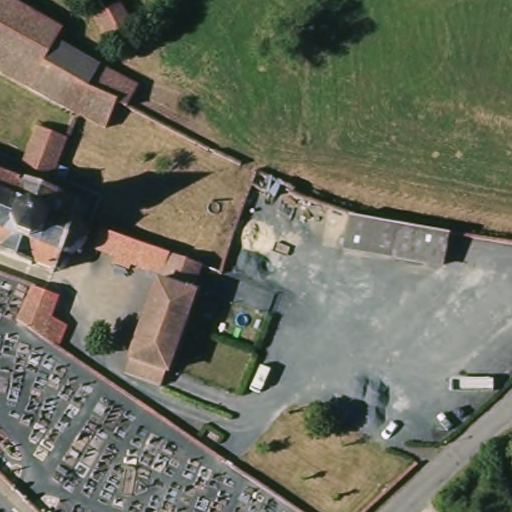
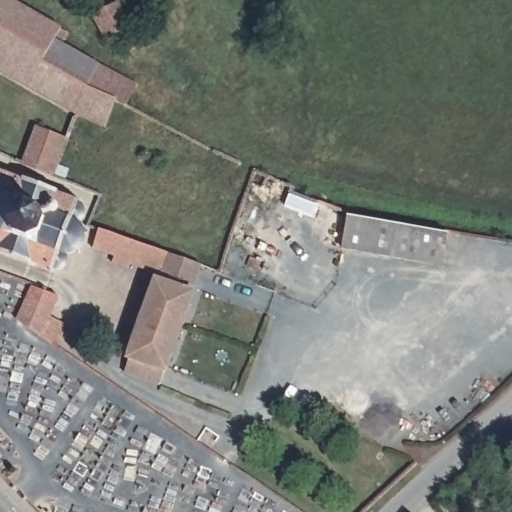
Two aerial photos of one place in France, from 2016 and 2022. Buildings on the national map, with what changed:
unchanged [(124,77),(125,77),(136,83),(137,83),(137,84),(136,87),(133,92),(130,99),(127,103),(126,102),(125,101),(117,98),(112,111),(109,122),(108,123),(107,126),(77,114),(0,70),(0,0),(9,0),(69,32),(63,42),(101,65),(110,70),(112,71),(124,77)]
unchanged [(121,8),(130,24),(132,28),(107,42),(92,19),(117,4),(121,8)]
unchanged [(37,126),(67,138),(63,149),(62,150),(62,151),(57,165),(59,166),(65,168),(61,179),(58,178),(37,170),(22,164),(37,126)]
unchanged [(2,168),(6,170),(5,173),(22,179),(23,176),(27,177),(26,178),(54,189),(55,187),(60,189),(58,192),(77,200),(77,196),(82,198),(80,201),(83,205),(85,209),(86,213),(85,217),(80,224),(85,229),(88,228),(89,232),(85,233),(85,239),(81,248),(82,250),(80,254),(77,252),(72,253),(69,252),(67,261),(66,265),(64,267),(62,268),(57,270),(54,269),(54,271),(50,270),(51,267),(34,261),(33,264),(30,263),(30,261),(1,250),(0,253),(0,171),(2,168)]
unchanged [(251,179),(254,169),(254,168),(257,169),(272,176),(282,181),(278,190),(277,194),(250,181),(251,179)]
unchanged [(448,238),(442,270),(346,252),(352,219),(448,238)]
unchanged [(180,329),(170,355),(169,357),(164,370),(160,378),(157,385),(124,372),(160,272),(132,261),(130,267),(114,261),(116,254),(94,247),(101,228),(122,235),(124,236),(132,239),(166,251),(168,251),(193,260),(203,264),(194,287),(193,290),(187,306),(180,329)]
unchanged [(47,287),(47,290),(58,295),(51,315),(66,323),(57,344),(29,329),(18,323),(14,321),(32,282),(47,287)]

